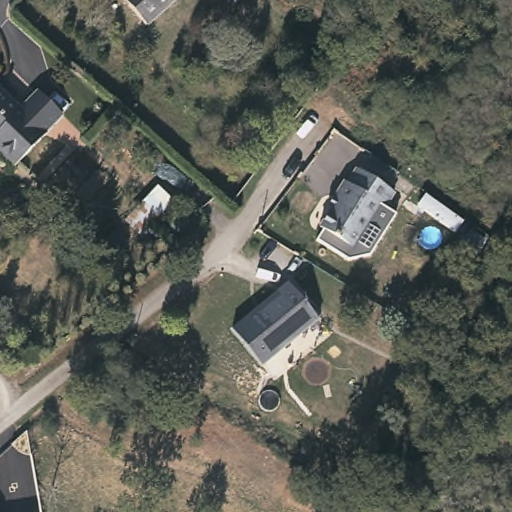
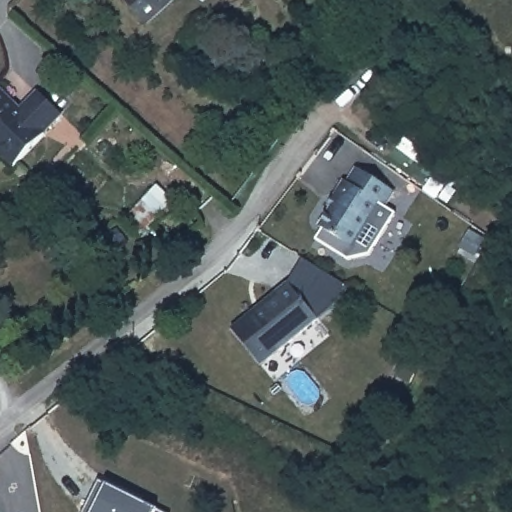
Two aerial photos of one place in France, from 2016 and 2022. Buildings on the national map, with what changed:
unchanged [(143,26),(120,0),(173,0),(143,26)]
unchanged [(21,106),(42,88),(64,113),(43,132),(49,137),(11,172),(0,160),(0,83),(21,106)]
unchanged [(355,180),(364,164),(391,181),(381,198),(376,196),(352,240),(326,225),(339,206),(330,200),(336,191),(346,176),(355,180)]
unchanged [(172,220),(144,241),(125,218),(146,197),(172,220)]
unchanged [(317,312),(280,348),(257,321),(283,295),(279,289),(290,279),(317,312)]
new [(156,509),(163,512),(81,512),(98,479),(106,483),(156,509)]

